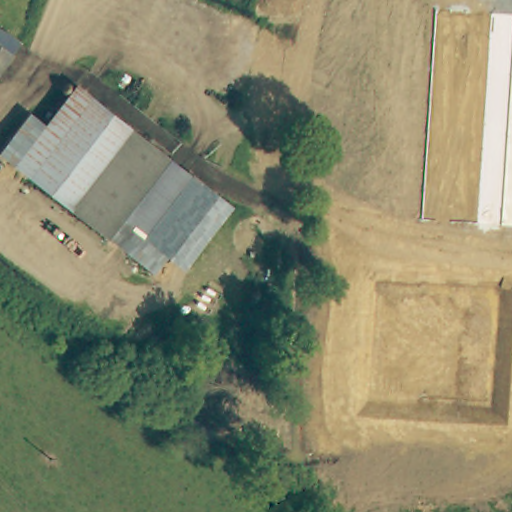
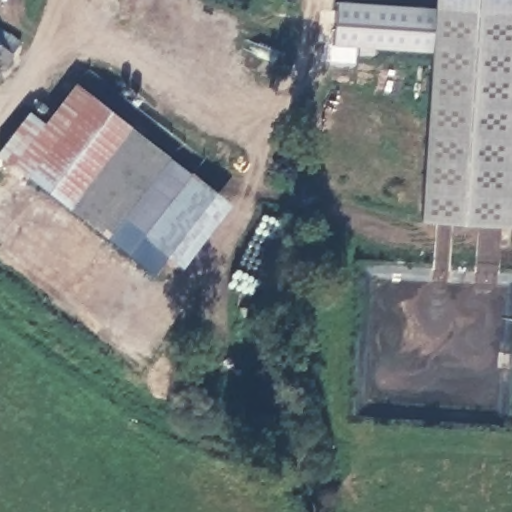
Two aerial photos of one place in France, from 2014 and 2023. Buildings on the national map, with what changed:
new [(512,0),(512,14),(435,10),(436,0),(512,0)]
new [(335,2),(435,10),(432,52),(331,45),(335,2)]
new [(435,10),(512,14),(512,227),(420,221),(435,10)]
unchanged [(0,81),(0,38),(21,55),(0,81)]
unchanged [(43,127),(74,85),(230,210),(182,272),(165,262),(152,279),(0,161),(0,151),(28,115),(43,127)]

